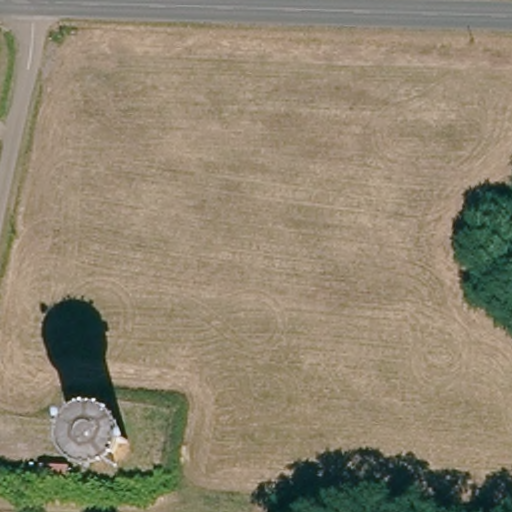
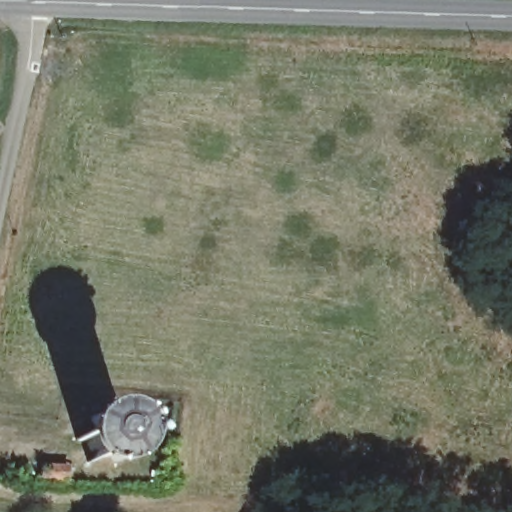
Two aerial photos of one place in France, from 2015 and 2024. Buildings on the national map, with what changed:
[]

